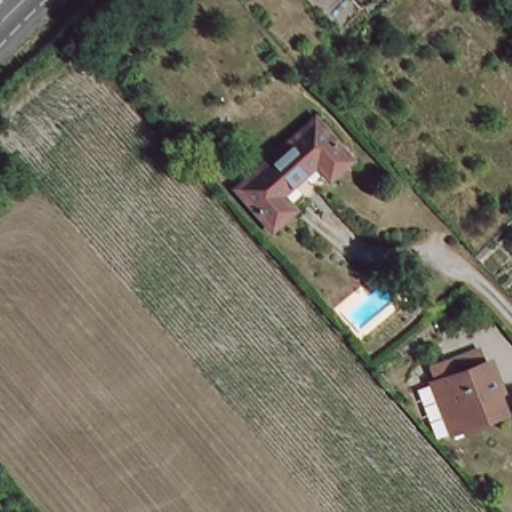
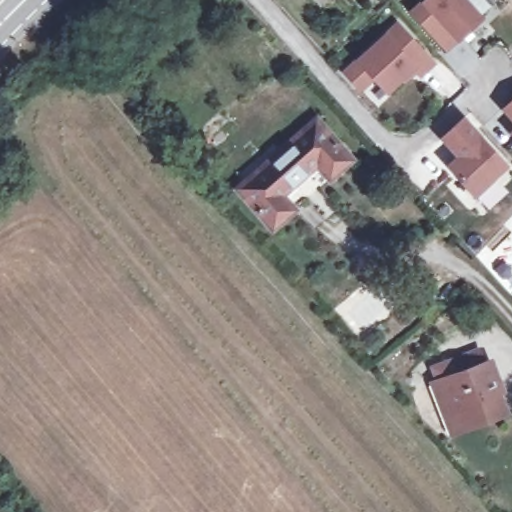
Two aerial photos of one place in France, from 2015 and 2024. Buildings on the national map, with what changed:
new [(422,0),(464,0),(478,17),(444,48),(410,11),(422,0)]
new [(395,24),(430,63),(417,75),(410,66),(384,91),(370,76),(357,89),(341,72),(395,24)]
new [(503,109),(512,101),(512,118),(503,109)]
unchanged [(264,219),(229,179),(280,134),(309,110),(343,150),(321,169),(316,174),(309,180),(285,200),(264,219)]
new [(461,120),(501,164),(490,175),(492,178),(470,198),(456,182),(458,179),(447,167),(457,157),(441,138),(461,120)]
new [(511,134),(512,133),(512,135),(511,134)]
unchanged [(445,428),(431,392),(458,382),(452,368),(483,356),(488,370),(504,414),(465,429),(448,436),(445,428)]

